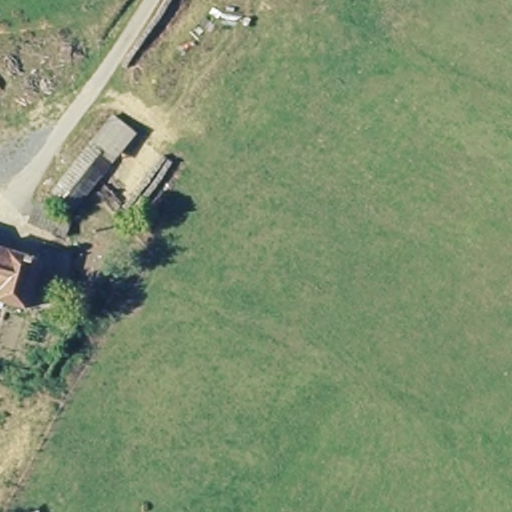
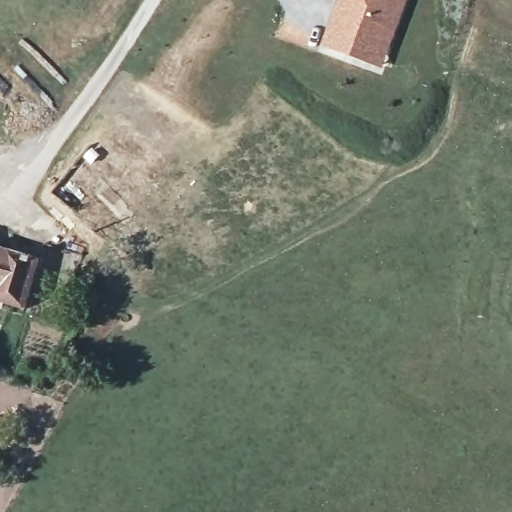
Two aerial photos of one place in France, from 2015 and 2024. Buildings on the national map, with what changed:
new [(342,0),(404,0),(380,66),(325,46),(342,0)]
demolished [(109,118),(136,138),(74,215),(65,209),(70,202),(52,189),(90,141),(109,118)]
demolished [(31,223),(35,201),(52,206),(50,216),(68,221),(65,233),(31,223)]
unchanged [(19,305),(0,300),(0,249),(30,257),(19,305)]

